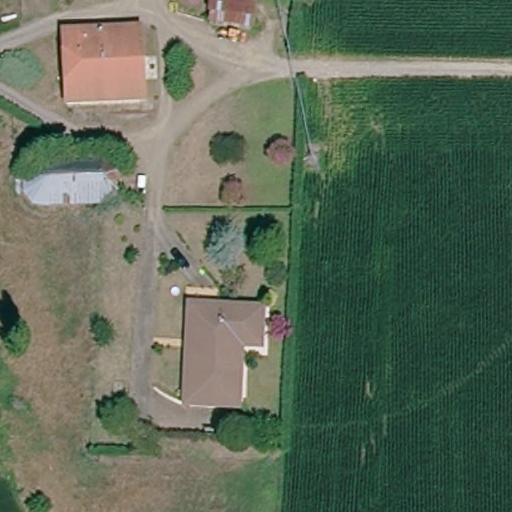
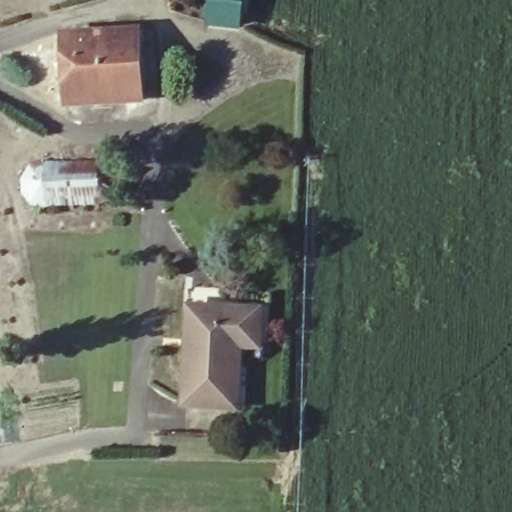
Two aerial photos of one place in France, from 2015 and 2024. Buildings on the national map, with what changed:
unchanged [(214,0),(256,0),(254,26),(211,20),(214,0)]
unchanged [(62,42),(136,37),(142,106),(68,111),(62,42)]
unchanged [(24,193),(25,184),(27,180),(30,175),(34,173),(38,170),(42,170),(49,169),(108,164),(112,165),(116,168),(119,171),(121,175),(123,180),(123,185),(120,195),(113,200),(52,209),(28,212),(24,193)]
unchanged [(260,422),(243,423),(184,424),(186,307),(282,310),(281,338),(259,350),(260,370),(260,422)]

